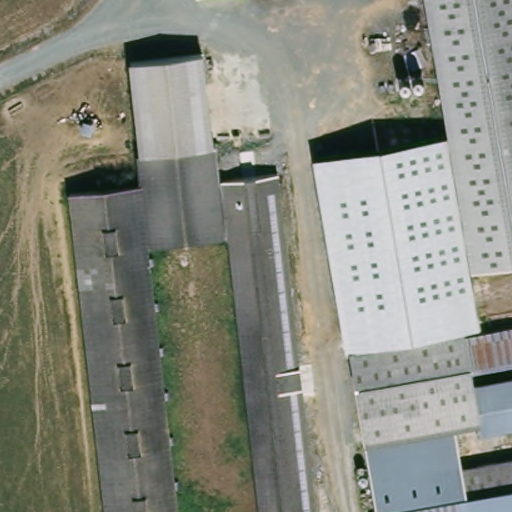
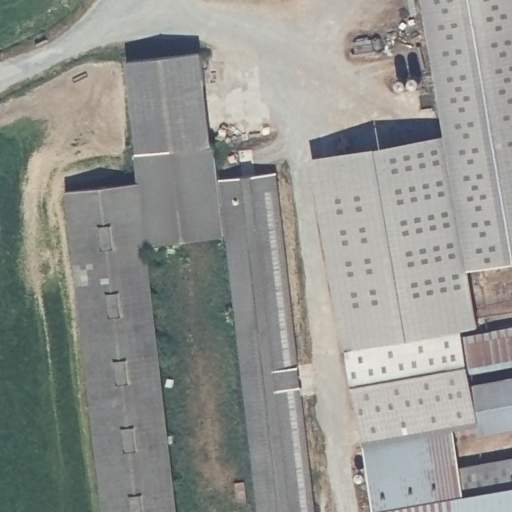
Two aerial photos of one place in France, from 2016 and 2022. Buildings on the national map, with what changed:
unchanged [(473,260),(428,0),(512,0),(512,253),(473,260)]
unchanged [(202,51),(214,131),(144,140),(137,59),(202,51)]
unchanged [(214,131),(220,178),(224,222),(154,229),(148,177),(144,140),(214,131)]
unchanged [(445,136),(479,326),(464,329),(462,322),(350,343),(345,343),(314,159),(445,136)]
unchanged [(279,169),(318,512),(258,512),(224,222),(220,178),(279,169)]
unchanged [(74,186),(148,177),(154,229),(186,512),(113,512),(74,186)]
unchanged [(462,322),(466,336),(473,370),(483,417),(473,419),(452,424),(464,487),(512,478),(512,512),(382,512),(350,343),(462,322)]
unchanged [(512,326),(512,362),(473,370),(466,336),(512,326)]
unchanged [(477,384),(512,377),(512,426),(479,432),(473,419),(483,417),(477,384)]
unchanged [(464,487),(460,467),(512,458),(512,478),(464,487)]

